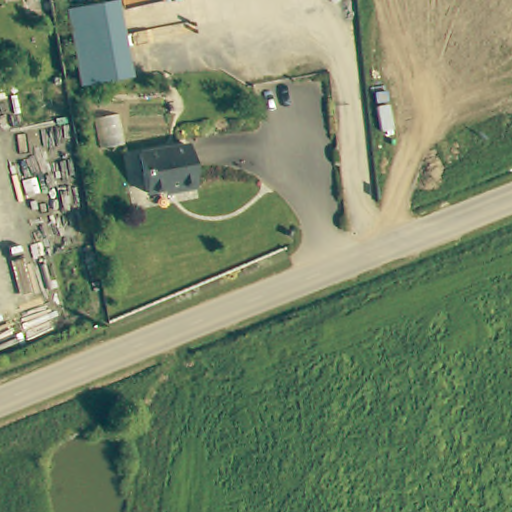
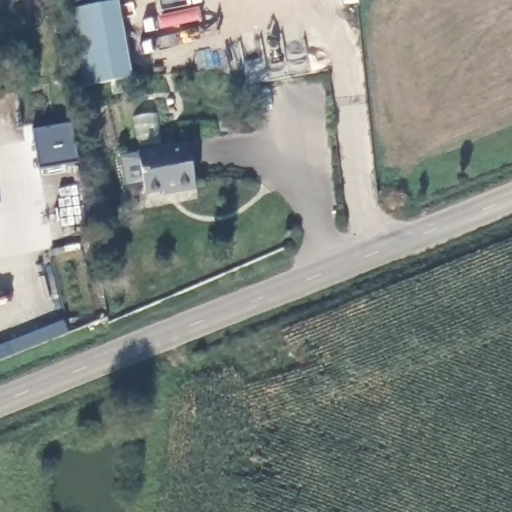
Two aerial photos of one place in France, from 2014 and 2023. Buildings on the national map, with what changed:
unchanged [(121,2),(135,77),(87,85),(74,10),(121,2)]
new [(72,124),(78,163),(40,170),(32,131),(72,124)]
unchanged [(193,148),(198,193),(174,195),(173,189),(142,193),(138,154),(193,148)]
demolished [(262,337),(269,356),(246,363),(240,344),(262,337)]

